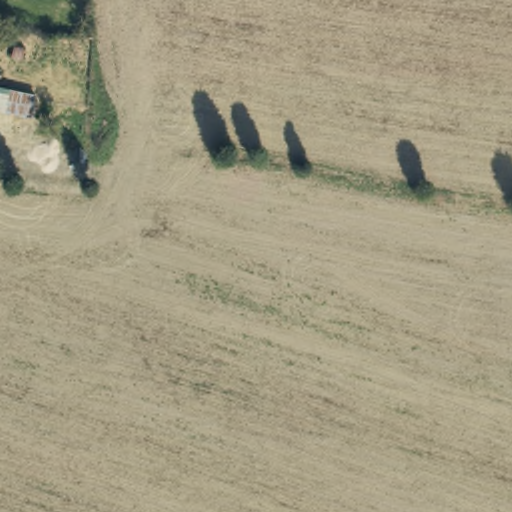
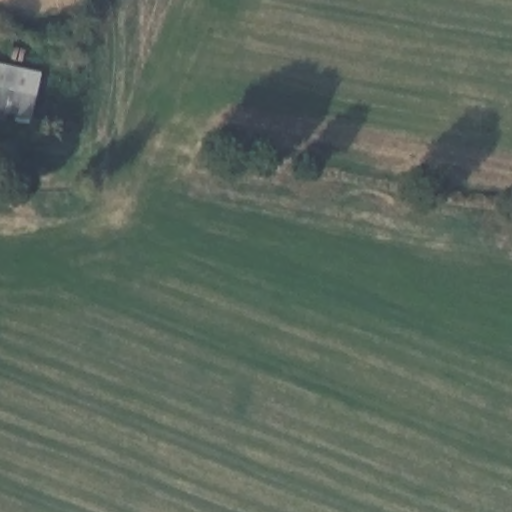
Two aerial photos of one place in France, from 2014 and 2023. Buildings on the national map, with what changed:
new [(42,72),(32,120),(0,113),(0,63),(42,72)]

